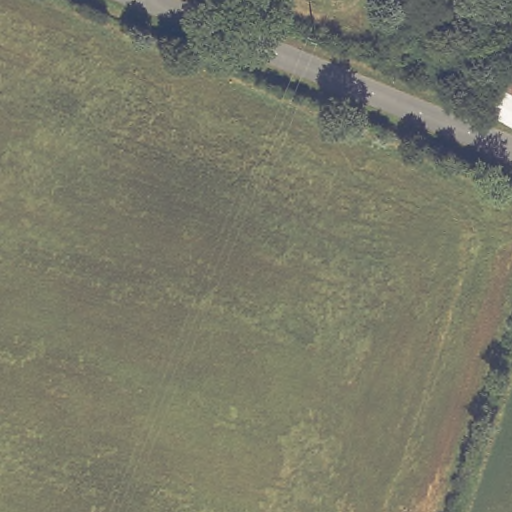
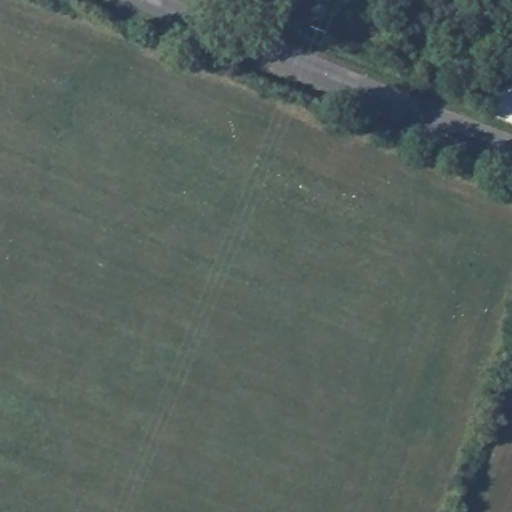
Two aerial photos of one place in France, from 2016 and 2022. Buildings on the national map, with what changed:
unchanged [(504,87),(512,72),(512,126),(482,111),(498,85),(504,87)]

